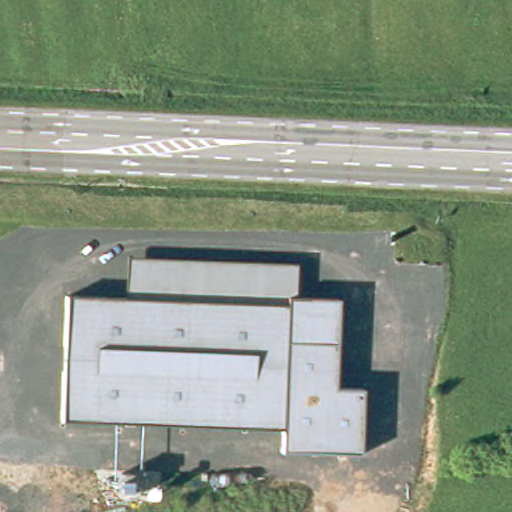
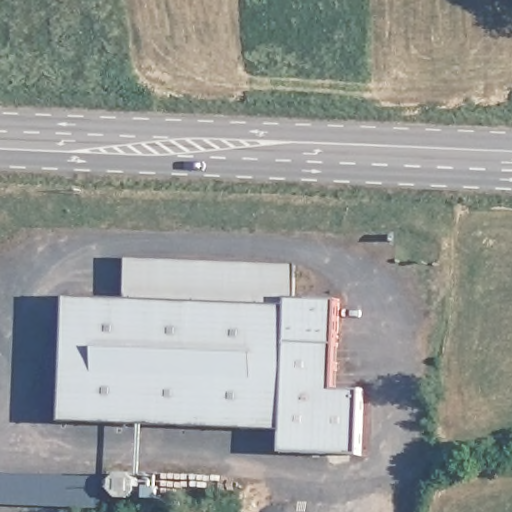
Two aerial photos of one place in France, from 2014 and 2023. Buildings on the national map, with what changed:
unchanged [(129,301),(131,261),(300,266),(299,297),(338,300),(334,388),(361,390),(359,454),(284,453),(283,429),(62,417),(65,298),(129,301)]
new [(113,485),(115,480),(120,475),(124,475),(130,475),(133,476),(136,478),(139,484),(139,487),(138,493),(136,496),(131,500),(123,500),(120,499),(115,495),(113,489),(113,485)]
new [(98,510),(0,507),(0,477),(99,480),(98,510)]

